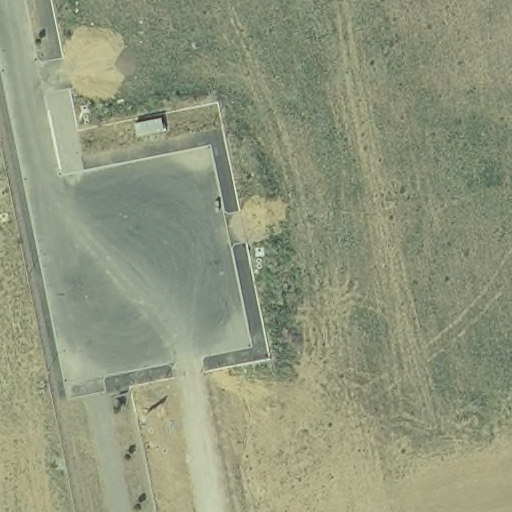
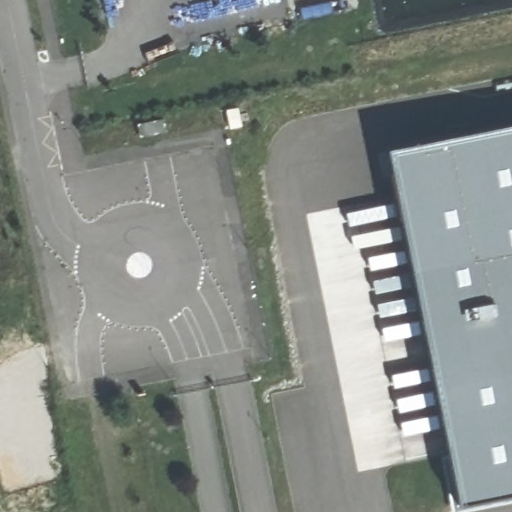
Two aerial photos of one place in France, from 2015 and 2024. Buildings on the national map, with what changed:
new [(136,124),(162,118),(165,130),(139,135),(136,124)]
new [(397,164),(512,142),(512,512),(462,512),(397,164)]

